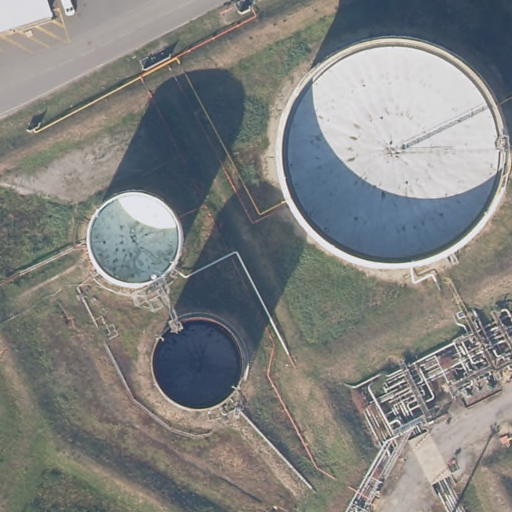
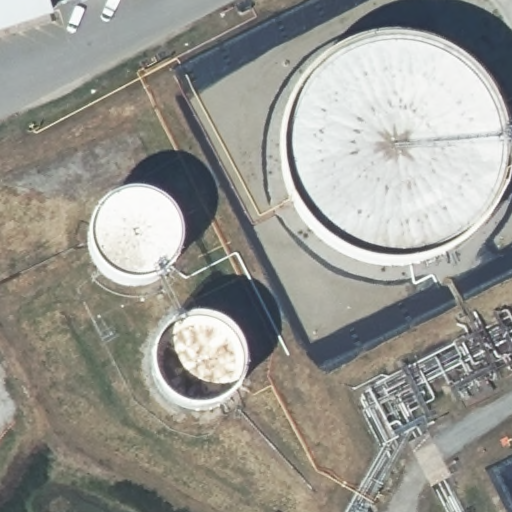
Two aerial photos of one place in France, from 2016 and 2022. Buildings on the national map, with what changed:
unchanged [(0,31),(0,0),(50,0),(54,14),(0,31)]

